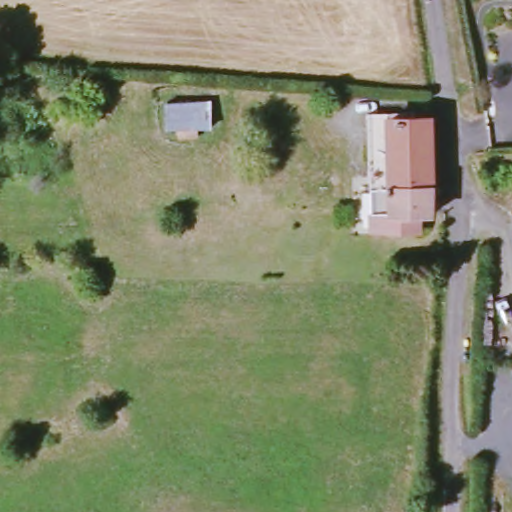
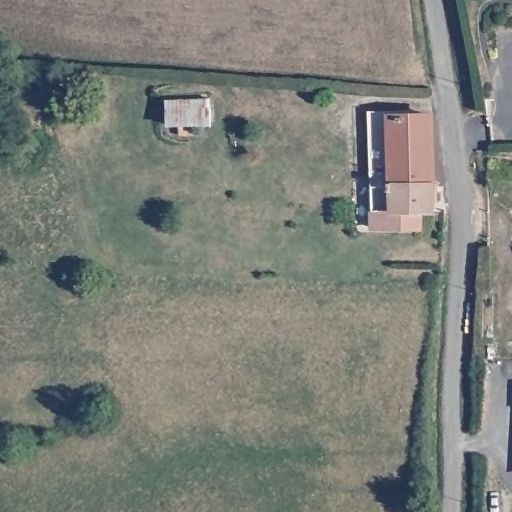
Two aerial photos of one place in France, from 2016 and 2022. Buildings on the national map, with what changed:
unchanged [(215,129),(170,133),(170,98),(210,94),(215,129)]
unchanged [(371,117),(435,118),(437,183),(392,182),(390,187),(372,186),(371,117)]
unchanged [(372,188),(372,186),(390,187),(392,182),(437,183),(438,210),(422,210),(422,229),(372,230),(372,188)]

